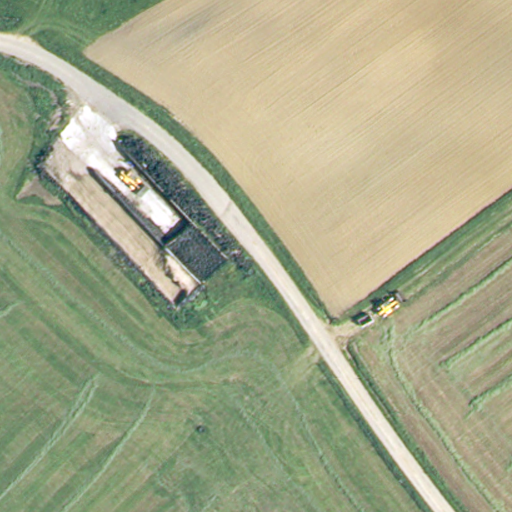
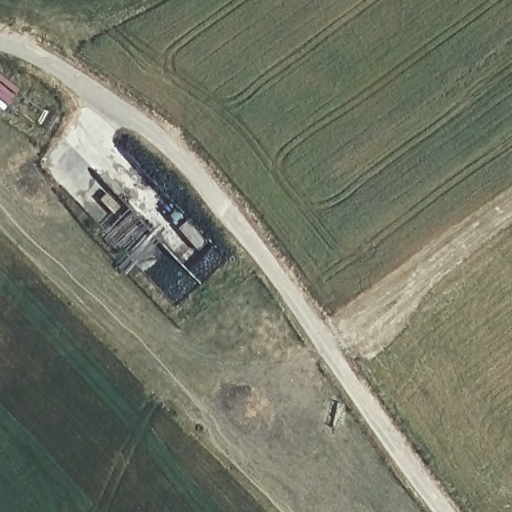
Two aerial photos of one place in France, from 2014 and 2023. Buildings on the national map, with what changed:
[]

